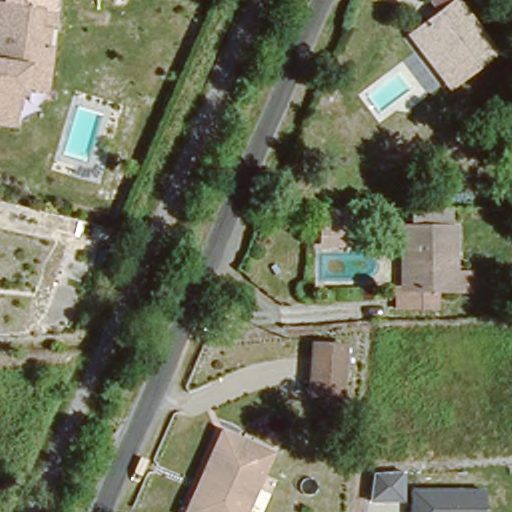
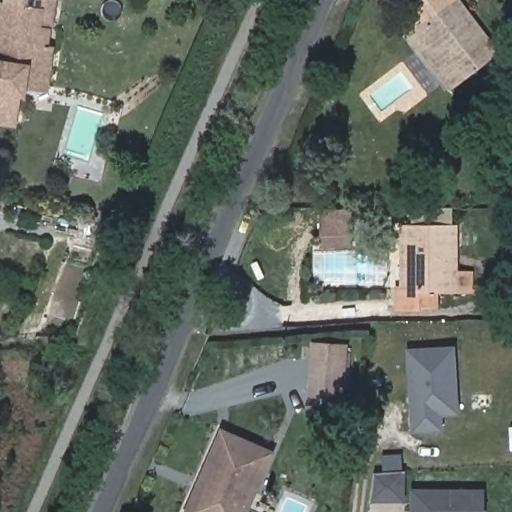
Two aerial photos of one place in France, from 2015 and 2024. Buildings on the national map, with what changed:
unchanged [(50,5),(47,24),(45,48),(29,46),(25,73),(22,99),(19,99),(16,114),(15,122),(0,120),(0,0),(6,0),(40,4),(50,5)]
unchanged [(480,57),(445,86),(408,34),(428,19),(417,4),(424,0),(439,0),(480,57)]
unchanged [(468,271),(468,289),(433,289),(433,309),(395,309),(395,290),(405,289),(401,227),(408,227),(409,206),(444,205),(445,271),(468,271)]
unchanged [(349,245),(318,246),(315,209),(348,208),(349,245)]
unchanged [(310,338),(343,341),(338,392),(306,388),(310,338)]
new [(451,346),(457,411),(440,412),(441,427),(415,430),(407,351),(451,346)]
unchanged [(265,457),(241,512),(180,512),(218,435),(265,457)]
unchanged [(367,504),(373,472),(404,470),(402,502),(367,504)]
unchanged [(411,512),(411,489),(483,489),(484,512),(411,512)]

